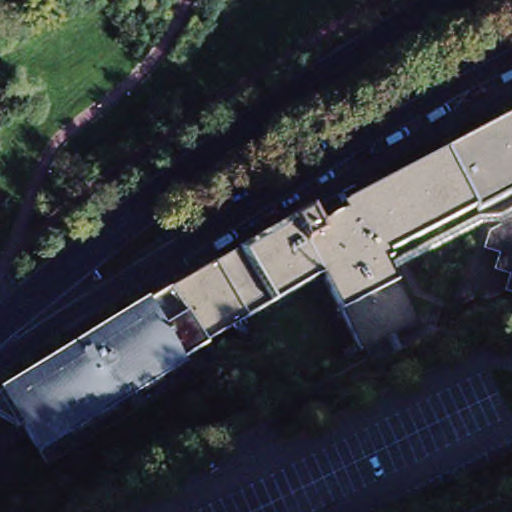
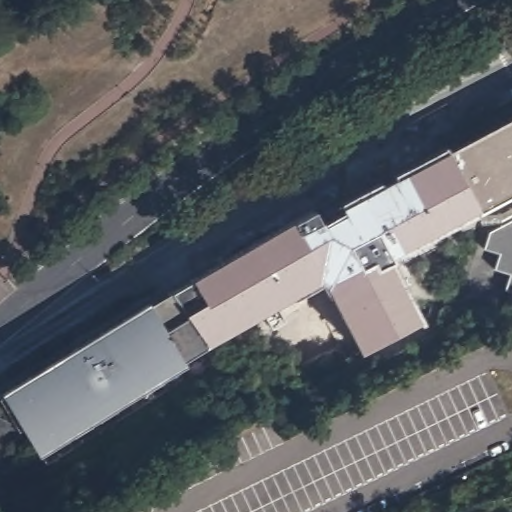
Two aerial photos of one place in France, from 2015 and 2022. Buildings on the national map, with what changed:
unchanged [(475,210),(473,206),(462,185),(443,149),(500,119),(512,112),(512,191),(475,210)]
unchanged [(386,179),(443,149),(462,185),(473,206),(385,252),(388,257),(382,261),(415,321),(408,325),(360,350),(321,280),(257,318),(240,328),(203,270),(218,261),(288,219),(309,209),(312,206),(335,194),(340,204),(365,190),(386,179)]
unchanged [(510,210),(512,209),(512,214),(510,210)]
unchanged [(511,293),(504,291),(510,275),(492,272),(500,255),(481,251),(489,231),(512,219),(512,293),(511,293)]
unchanged [(203,270),(240,328),(208,348),(168,291),(203,270)]
unchanged [(212,355),(44,460),(20,421),(17,423),(15,425),(0,417),(0,397),(168,291),(208,348),(212,355)]

